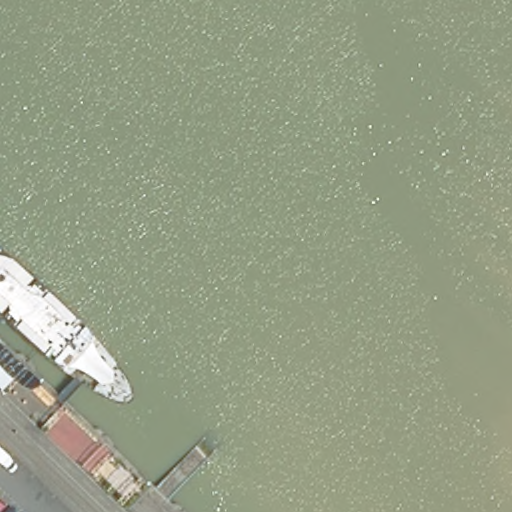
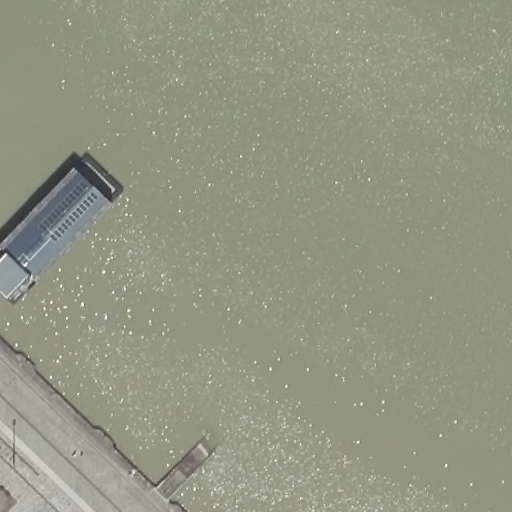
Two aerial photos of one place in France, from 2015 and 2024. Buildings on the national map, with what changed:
new [(0,242),(74,166),(113,204),(37,283),(30,276),(6,301),(0,295),(0,256),(5,251),(0,247),(0,242)]

